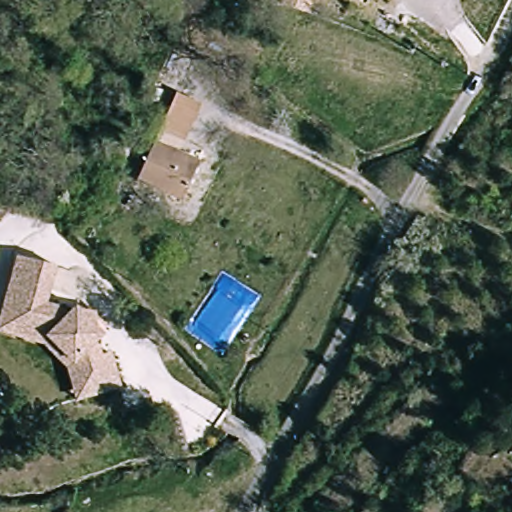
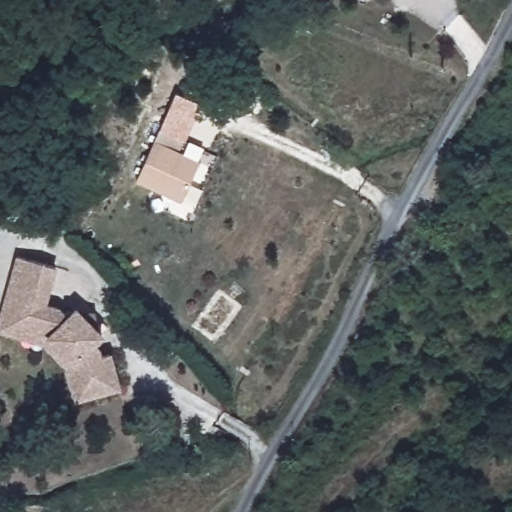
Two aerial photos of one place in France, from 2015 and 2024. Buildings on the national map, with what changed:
unchanged [(197,162),(183,198),(138,180),(173,95),(196,105),(177,154),(197,162)]
unchanged [(73,364),(47,335),(23,330),(28,302),(8,297),(18,258),(54,266),(44,305),(59,308),(67,317),(75,309),(100,337),(93,346),(99,351),(101,359),(110,357),(118,392),(83,402),(73,364)]
unchanged [(0,332),(0,326),(8,297),(28,302),(23,330),(47,335),(73,364),(83,402),(75,403),(68,369),(40,343),(0,332)]

